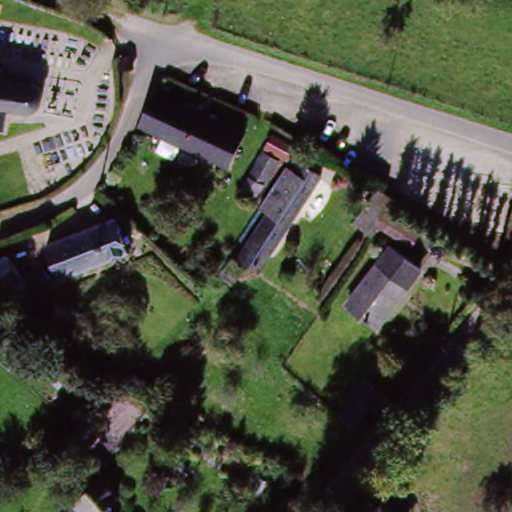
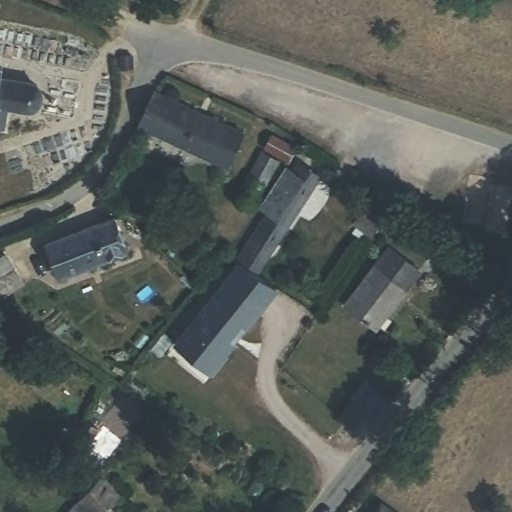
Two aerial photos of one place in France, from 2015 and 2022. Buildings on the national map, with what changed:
unchanged [(132,70),(127,70),(122,70),(122,55),(132,56),(132,70)]
unchanged [(4,112),(1,133),(0,133),(0,83),(36,89),(41,97),(41,104),(39,111),(33,115),(28,116),(4,112)]
unchanged [(229,166),(138,125),(155,91),(245,134),(229,166)]
unchanged [(260,153),(266,140),(290,153),(282,165),(260,153)]
unchanged [(260,190),(257,189),(246,209),(232,200),(257,156),(275,166),(260,190)]
unchanged [(288,179),(295,169),(315,182),(256,272),(236,258),(262,218),(254,212),(280,173),(288,179)]
unchanged [(396,199),(378,226),(376,225),(370,235),(355,225),(378,188),(396,199)]
unchanged [(113,217),(126,251),(58,277),(45,243),(113,217)]
unchanged [(410,248),(385,232),(392,220),(418,235),(410,248)]
unchanged [(390,249),(418,270),(375,327),(346,306),(390,249)]
new [(177,350),(182,342),(236,258),(256,272),(272,283),(217,365),(212,373),(177,350)]
unchanged [(22,285),(0,300),(0,262),(5,260),(22,285)]
demolished [(225,289),(213,278),(227,263),(240,272),(225,289)]
unchanged [(390,405),(363,437),(340,418),(356,398),(353,396),(365,382),(390,405)]
unchanged [(62,450),(80,425),(95,435),(77,460),(62,450)]
unchanged [(71,507),(75,511),(96,483),(115,500),(104,512),(68,512),(71,507)]
unchanged [(381,505),(391,512),(376,512),(381,505)]

